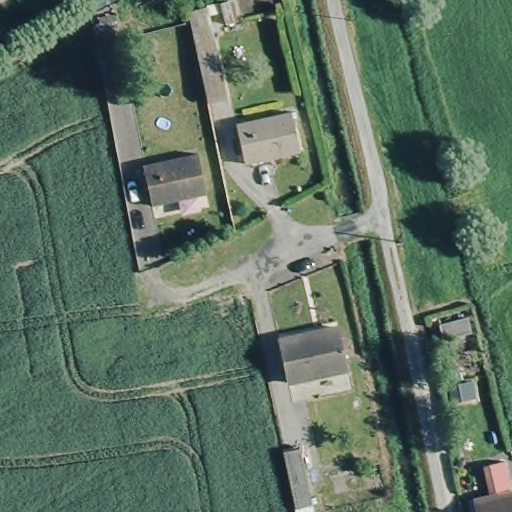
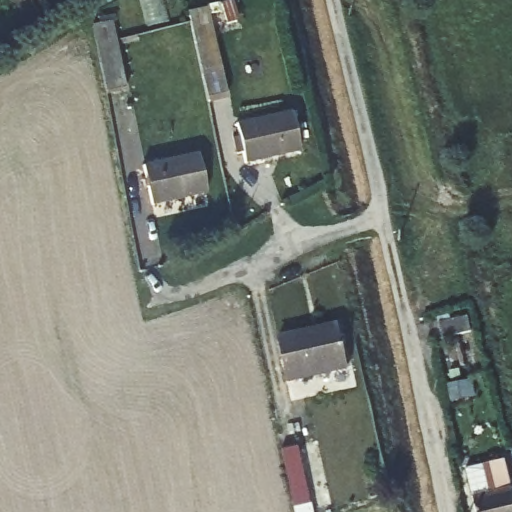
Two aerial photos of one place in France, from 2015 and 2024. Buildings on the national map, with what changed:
unchanged [(186,13),(207,9),(223,96),(205,99),(186,13)]
unchanged [(97,38),(113,36),(123,86),(108,89),(97,38)]
unchanged [(294,154),(237,164),(231,123),(286,111),(294,154)]
unchanged [(205,196),(150,205),(140,161),(198,151),(205,196)]
unchanged [(278,338),(337,324),(345,365),(288,378),(278,338)]
unchanged [(437,328),(465,324),(467,342),(441,345),(437,328)]
unchanged [(285,450),(300,448),(313,505),(296,509),(285,450)]
unchanged [(477,498),(498,494),(494,461),(512,460),(512,464),(512,512),(480,512),(477,498)]

